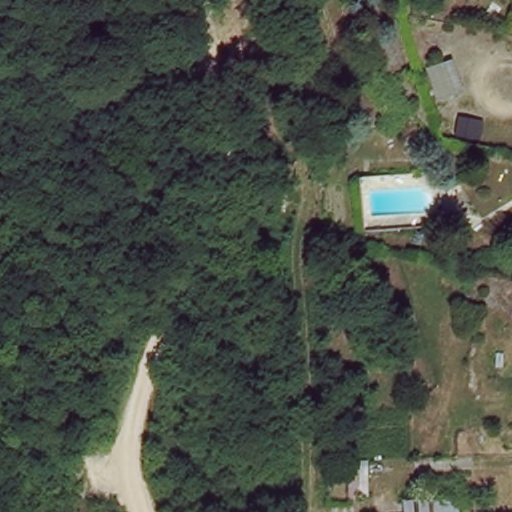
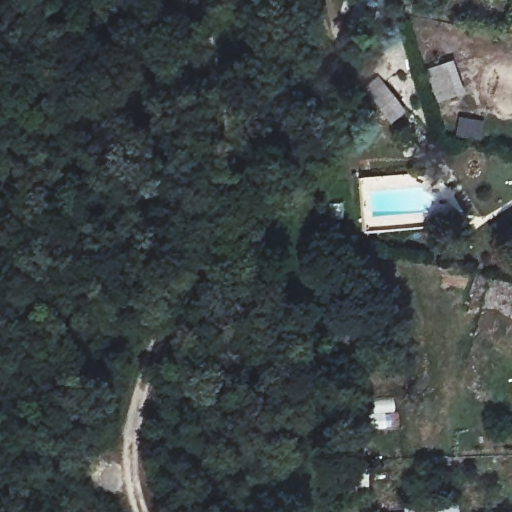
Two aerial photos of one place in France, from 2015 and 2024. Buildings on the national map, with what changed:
unchanged [(465,92),(437,102),(424,68),(452,58),(465,92)]
unchanged [(409,508),(458,507),(458,512),(409,512),(409,508)]

